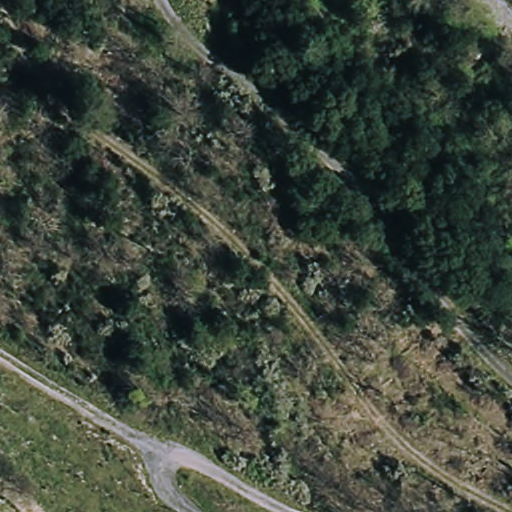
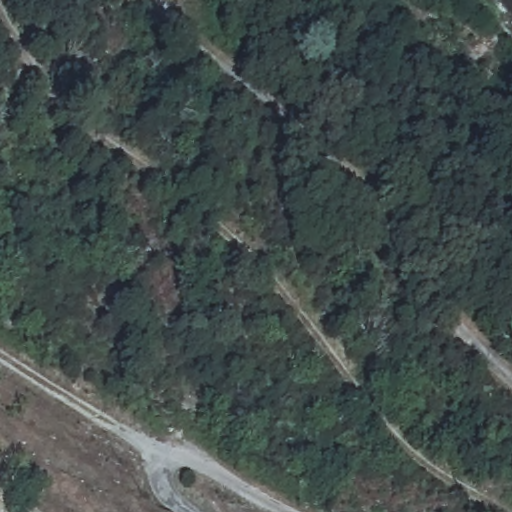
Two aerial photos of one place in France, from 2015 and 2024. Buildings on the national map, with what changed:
[]

